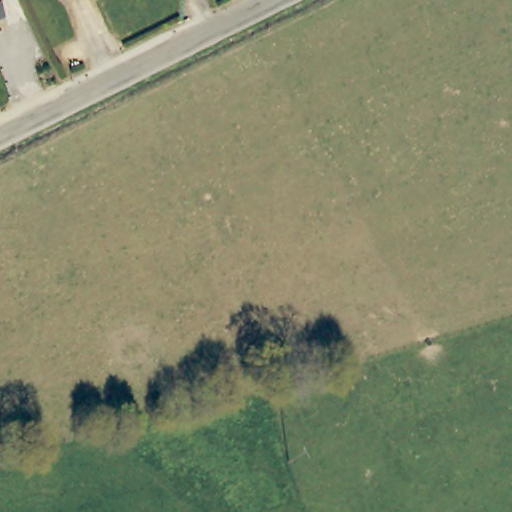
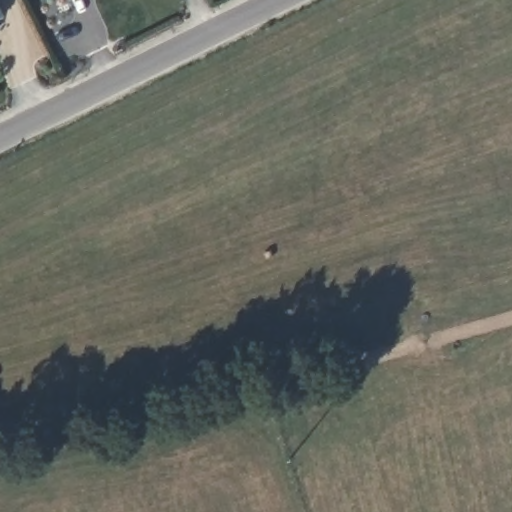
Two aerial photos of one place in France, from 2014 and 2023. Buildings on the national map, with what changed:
unchanged [(0,23),(0,0),(9,19),(0,23)]

